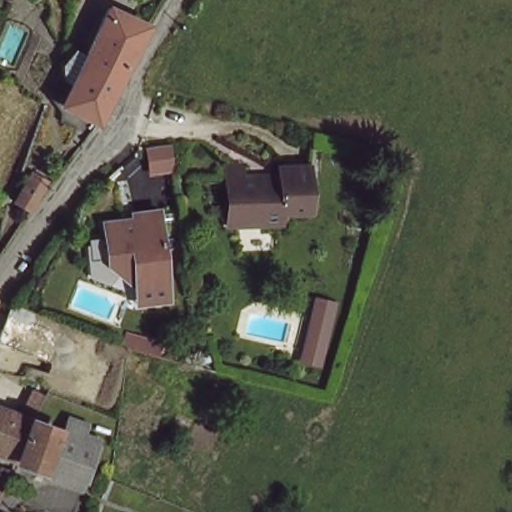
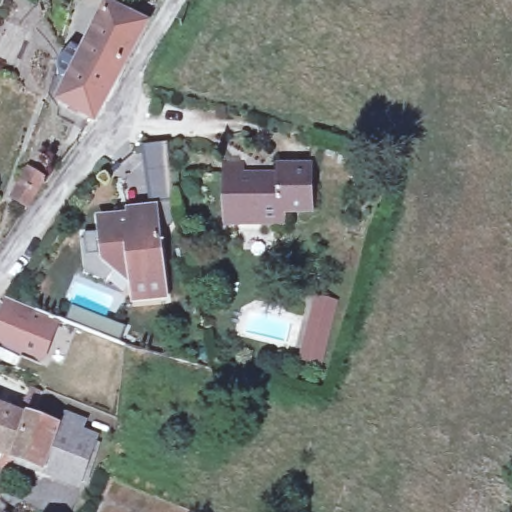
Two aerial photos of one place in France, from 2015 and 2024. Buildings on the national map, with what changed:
unchanged [(110,8),(147,25),(95,122),(60,104),(110,8)]
unchanged [(148,175),(143,147),(170,143),(172,173),(148,175)]
unchanged [(246,187),(222,187),(222,176),(246,176),(246,187)]
unchanged [(29,177),(45,186),(43,188),(28,215),(12,205),(29,177)]
unchanged [(282,182),(305,184),(307,219),(286,218),(286,236),(241,236),(238,220),(228,219),(227,192),(282,191),(282,182)]
unchanged [(142,267),(133,278),(115,265),(112,249),(103,250),(98,216),(118,213),(118,217),(129,216),(127,206),(154,202),(163,259),(141,262),(142,267)]
unchanged [(112,249),(115,265),(133,278),(142,267),(141,262),(163,259),(168,297),(133,304),(130,284),(105,265),(103,250),(112,249)]
unchanged [(323,308),(327,292),(342,295),(339,312),(329,356),(322,354),(313,352),(317,333),(323,308)]
new [(51,327),(41,358),(0,344),(0,310),(51,327)]
unchanged [(157,360),(122,350),(125,332),(162,341),(157,360)]
unchanged [(5,462),(0,459),(0,416),(5,418),(37,429),(22,468),(5,462)]
unchanged [(91,492),(22,468),(37,429),(70,440),(77,421),(94,428),(88,446),(103,450),(91,492)]
unchanged [(1,471),(12,476),(0,506),(0,473),(1,471)]

